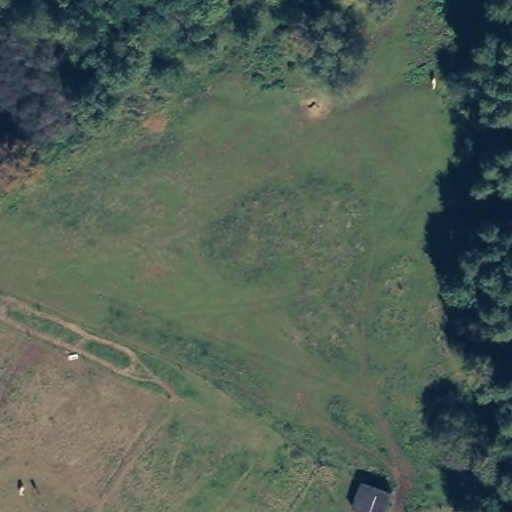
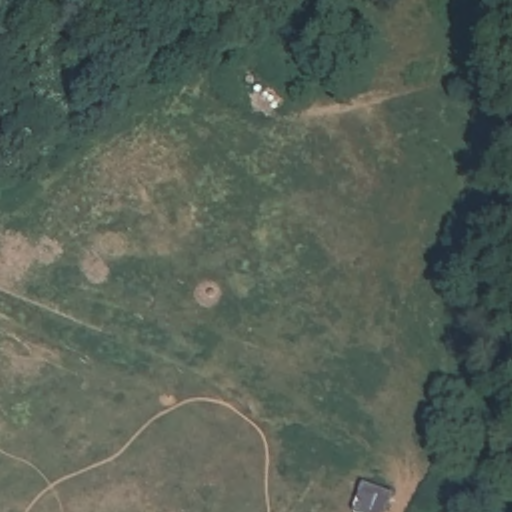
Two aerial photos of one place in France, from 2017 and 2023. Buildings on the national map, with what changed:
unchanged [(398,495),(393,512),(359,512),(368,486),(398,495)]

